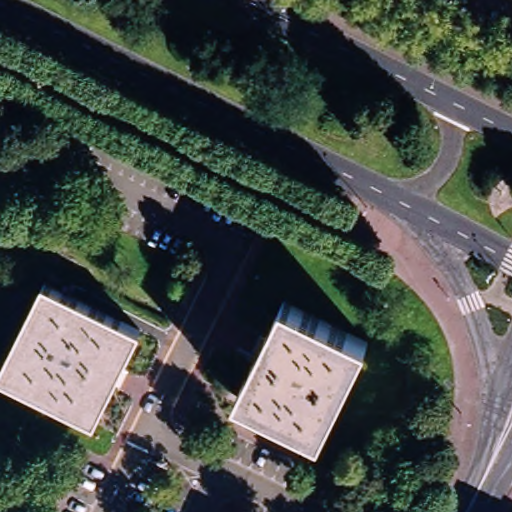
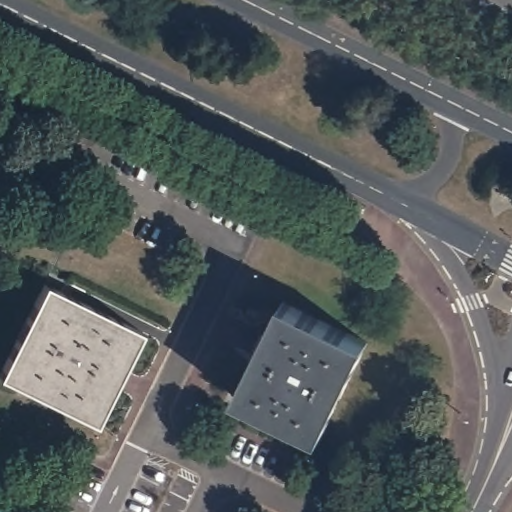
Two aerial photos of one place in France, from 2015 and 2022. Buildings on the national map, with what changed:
unchanged [(95,424),(0,377),(0,372),(44,284),(140,332),(95,424)]
unchanged [(320,439),(237,397),(284,302),(367,343),(320,439)]

